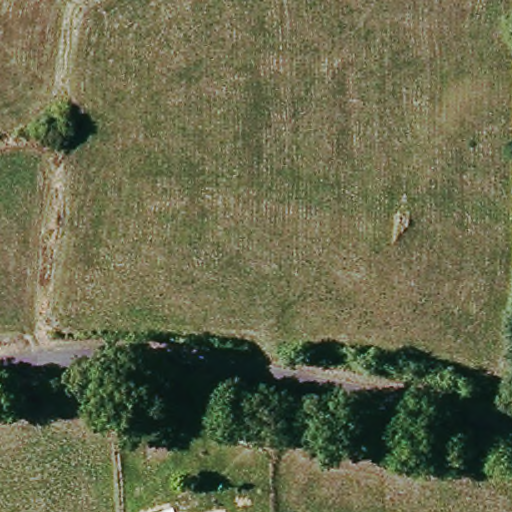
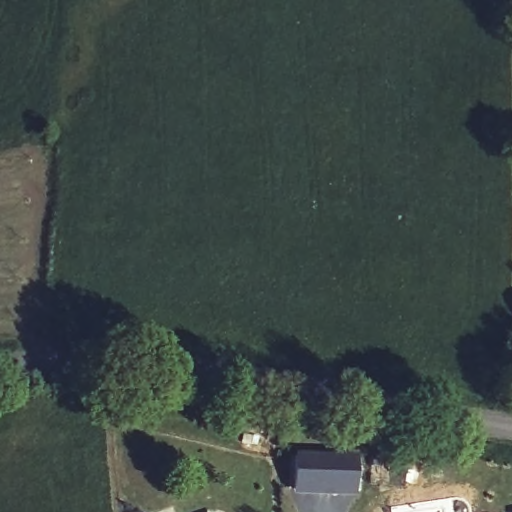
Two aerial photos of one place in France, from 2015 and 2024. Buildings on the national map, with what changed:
new [(294,494),(297,451),(360,455),(357,497),(294,494)]

